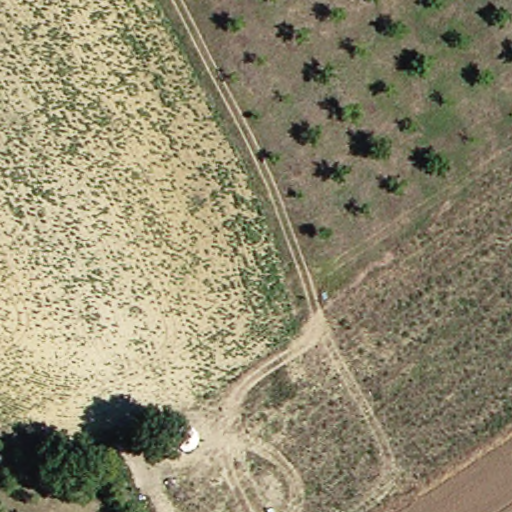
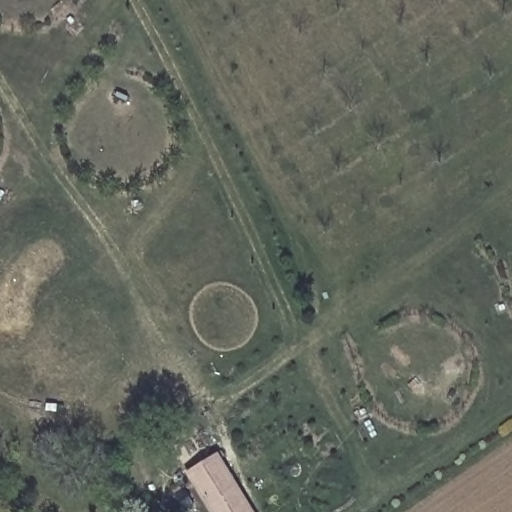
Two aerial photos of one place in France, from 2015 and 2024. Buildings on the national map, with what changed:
new [(185,474),(217,455),(253,512),(209,512),(185,474)]

